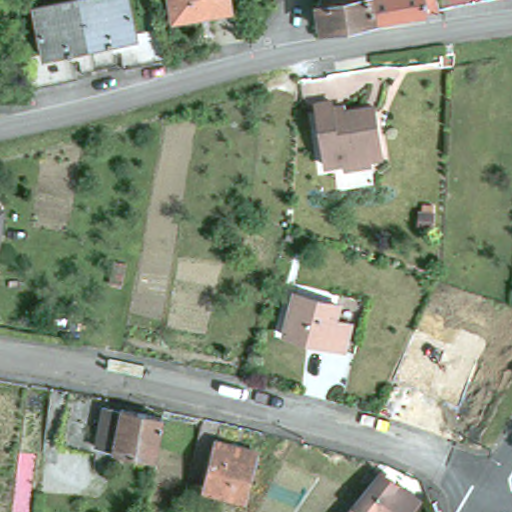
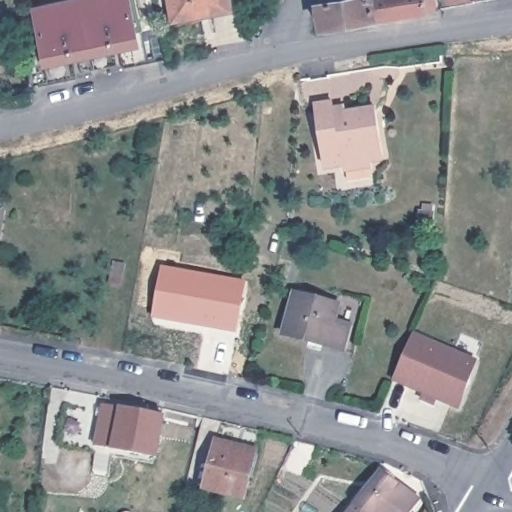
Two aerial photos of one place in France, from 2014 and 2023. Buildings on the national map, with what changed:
unchanged [(17,35),(37,31),(30,0),(37,0),(51,62),(25,67),(17,35)]
unchanged [(90,49),(73,52),(67,26),(63,27),(70,58),(51,62),(37,0),(77,0),(82,22),(84,21),(90,49)]
unchanged [(157,40),(127,46),(115,48),(109,17),(104,17),(109,45),(90,49),(84,21),(82,22),(77,0),(122,0),(125,14),(133,12),(150,8),(157,40)]
unchanged [(175,19),(172,0),(230,0),(231,10),(175,19)]
unchanged [(283,0),(278,6),(277,0),(283,0)]
unchanged [(317,4),(319,0),(372,0),(375,19),(322,27),(317,4)]
unchanged [(437,0),(439,9),(375,19),(372,0),(437,0)]
unchanged [(314,102),(326,101),(333,100),(335,110),(375,105),(381,155),(371,156),(371,162),(344,165),(342,160),(323,162),(323,160),(314,102)]
unchanged [(3,209),(0,227),(0,209),(3,209)]
unchanged [(294,262),(287,286),(273,282),(280,258),(294,262)]
new [(236,333),(152,317),(162,266),(246,281),(236,333)]
unchanged [(296,288),(339,300),(335,315),(351,320),(344,345),(285,330),(296,288)]
new [(434,407),(418,400),(422,393),(392,381),(412,332),(477,360),(458,408),(437,401),(434,407)]
unchanged [(163,417),(155,457),(95,446),(103,406),(123,409),(163,417)]
unchanged [(223,441),(239,445),(240,442),(250,443),(248,452),(260,455),(254,476),(259,477),(253,500),(213,489),(223,441)]
unchanged [(381,468),(400,482),(376,512),(348,512),(381,468)]
unchanged [(421,498),(410,512),(376,512),(400,482),(421,498)]
unchanged [(421,506),(430,512),(417,512),(421,506)]

